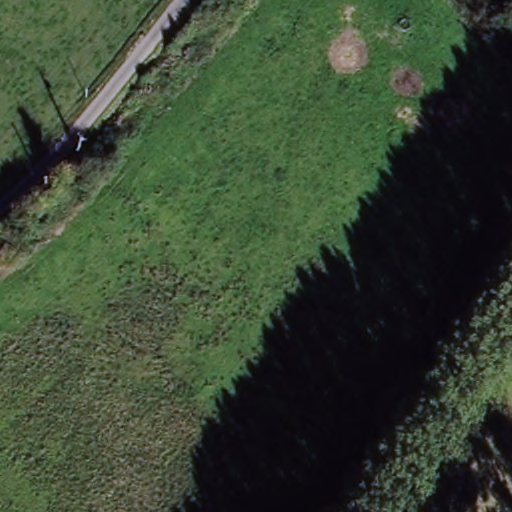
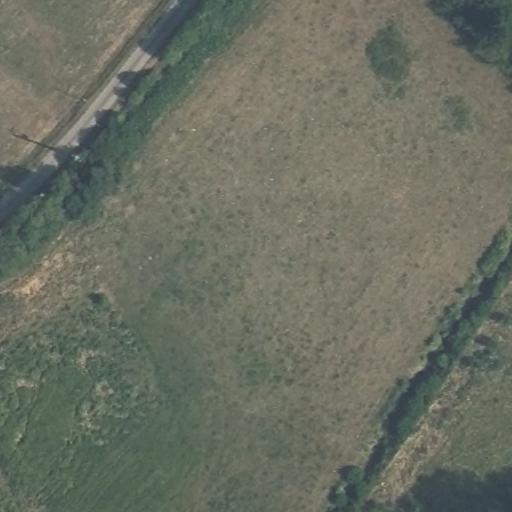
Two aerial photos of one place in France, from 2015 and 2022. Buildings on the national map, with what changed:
[]

